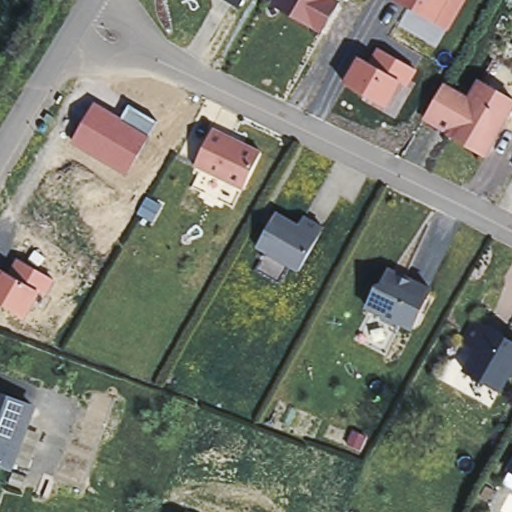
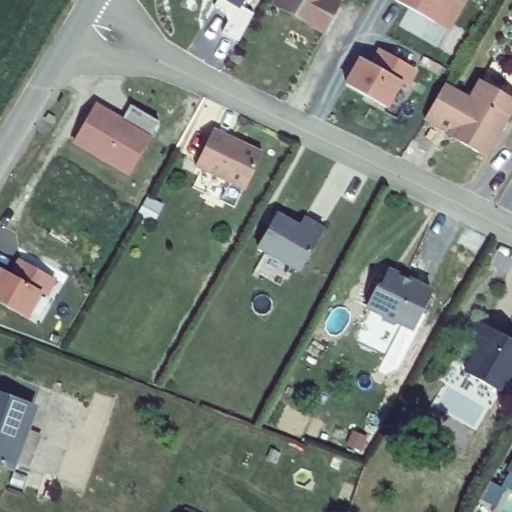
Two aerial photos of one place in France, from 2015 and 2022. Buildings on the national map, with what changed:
unchanged [(239,7),(227,0),(243,0),(239,7)]
unchanged [(339,4),(322,32),(275,4),(277,0),(333,0),(339,4)]
unchanged [(452,32),(435,24),(393,0),(469,0),(452,32)]
unchanged [(360,60),(370,65),(379,51),(417,71),(409,86),(401,82),(386,108),(347,86),(360,60)]
unchanged [(482,82),(512,101),(512,108),(485,156),(450,136),(452,134),(425,119),(444,86),(470,102),(482,82)]
unchanged [(128,175),(72,145),(94,104),(123,120),(132,103),(159,121),(128,175)]
unchanged [(262,154),(245,190),(196,167),(214,130),(262,154)]
unchanged [(299,226),(305,217),(324,230),(300,271),(258,247),(277,214),(299,226)]
unchanged [(48,299),(39,293),(26,317),(0,304),(0,266),(12,272),(19,257),(57,278),(48,299)]
unchanged [(380,289),(390,271),(432,292),(412,330),(399,322),(393,326),(382,318),(381,314),(366,306),(377,287),(380,289)]
unchanged [(484,322),(512,339),(512,379),(504,392),(469,372),(482,352),(471,344),(484,322)]
unchanged [(30,403),(8,463),(0,461),(0,393),(30,403)]
unchanged [(512,468),(512,471),(511,471),(512,468)]

